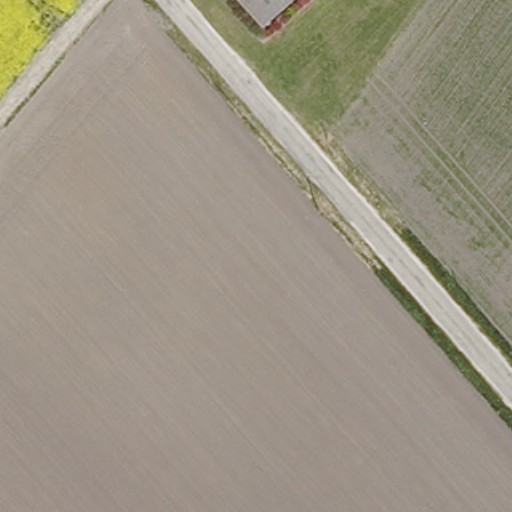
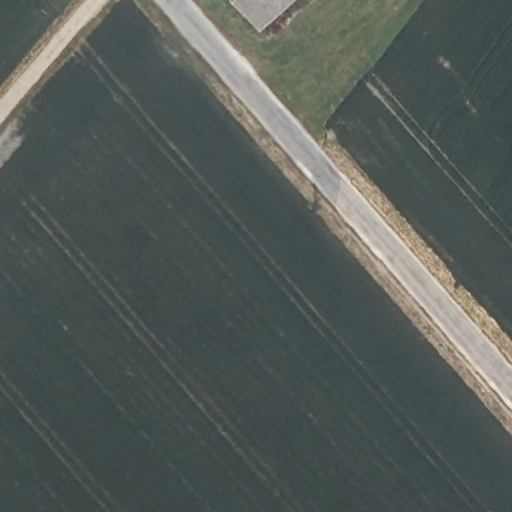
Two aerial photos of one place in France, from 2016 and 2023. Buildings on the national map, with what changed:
unchanged [(266,20),(248,0),(289,0),(266,20)]

